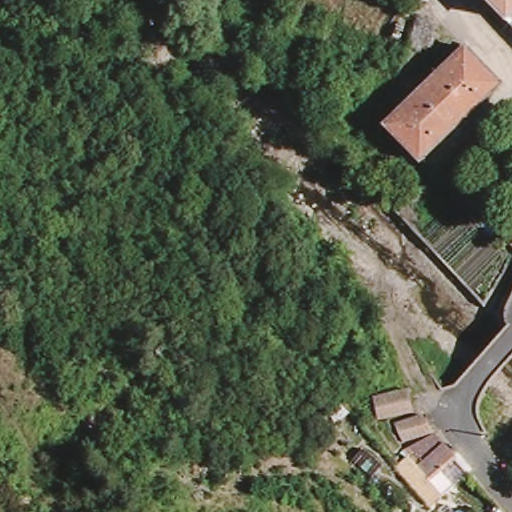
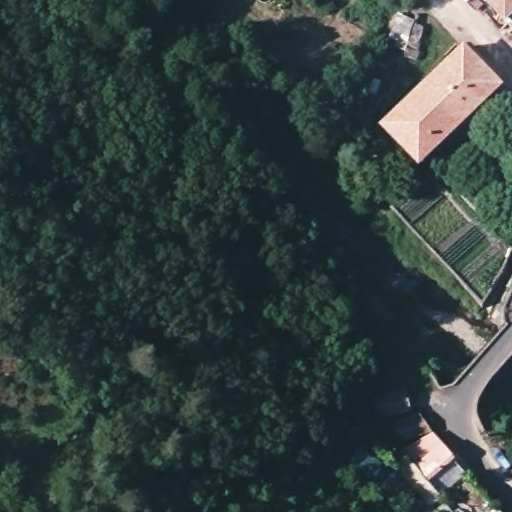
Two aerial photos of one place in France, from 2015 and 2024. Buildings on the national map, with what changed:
unchanged [(482,0),(512,0),(512,12),(503,21),(482,0)]
unchanged [(418,157),(382,121),(462,43),(497,79),(418,157)]
unchanged [(403,413),(389,417),(374,419),(369,398),(404,390),(407,412),(403,413)]
unchanged [(400,443),(390,428),(414,416),(419,415),(429,430),(400,443)]
unchanged [(399,451),(430,432),(451,457),(427,482),(399,451)]

